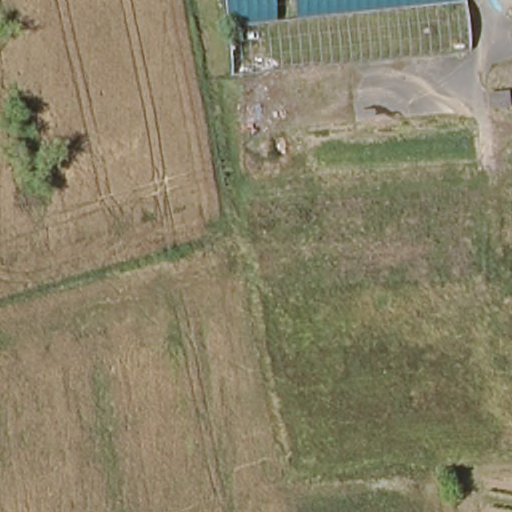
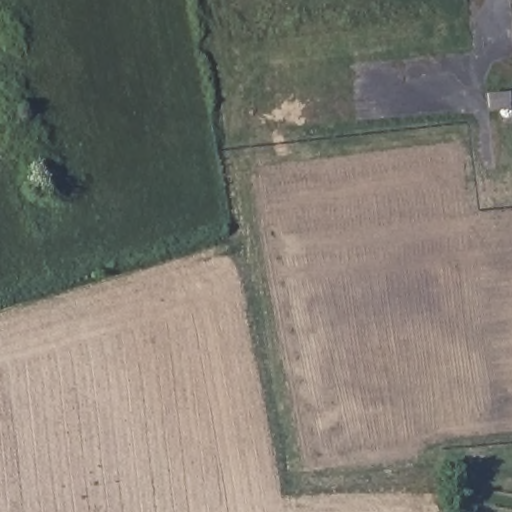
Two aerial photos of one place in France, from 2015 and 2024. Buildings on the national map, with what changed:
demolished [(231,75),(225,0),(462,0),(467,47),(231,75)]

